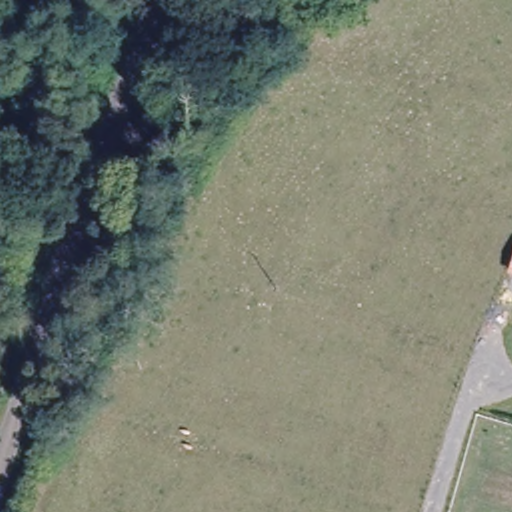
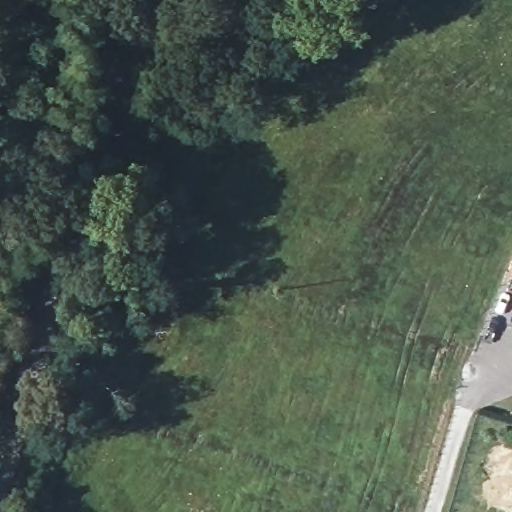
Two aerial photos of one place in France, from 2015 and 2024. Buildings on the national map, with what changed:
unchanged [(512,256),(512,277),(506,275),(512,256)]

